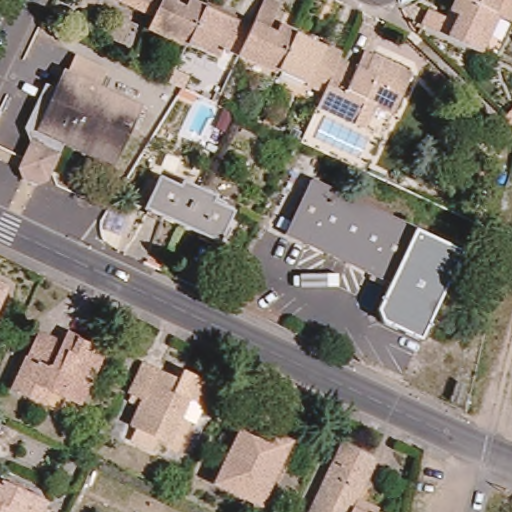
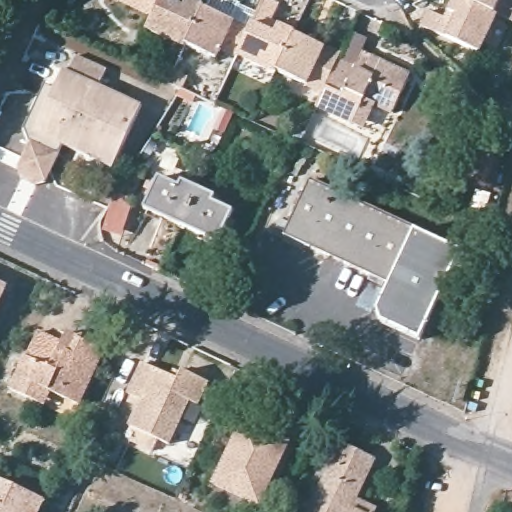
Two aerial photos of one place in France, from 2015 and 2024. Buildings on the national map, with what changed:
unchanged [(148,26),(112,10),(117,0),(160,0),(148,26)]
unchanged [(160,0),(179,0),(175,8),(197,19),(181,55),(141,39),(148,26),(160,0)]
unchanged [(492,15),(474,53),(416,26),(423,10),(441,19),(450,0),(458,0),(492,15)]
unchanged [(458,0),(507,0),(512,2),(512,20),(510,24),(492,15),(458,0)]
unchanged [(243,40),(259,8),(274,15),(266,32),(289,43),(271,81),(232,65),(243,40)]
unchanged [(197,19),(243,40),(232,65),(218,58),(213,70),(181,55),(197,19)]
unchanged [(289,43),(336,65),(333,70),(318,102),(271,81),(289,43)]
unchanged [(35,187),(21,180),(17,170),(22,160),(29,143),(24,128),(31,111),(44,84),(54,88),(63,69),(67,71),(74,55),(106,71),(99,86),(142,106),(113,169),(63,146),(50,173),(45,183),(35,187)]
unchanged [(388,124),(359,110),(348,134),(311,116),(318,102),(333,70),(350,78),(357,63),(366,67),(406,85),(388,124)]
unchanged [(502,118),(512,108),(512,127),(502,118)]
unchanged [(139,209),(154,178),(173,187),(176,180),(193,188),(176,226),(139,209)]
unchanged [(306,178),(411,227),(384,284),(279,235),(306,178)]
unchanged [(193,188),(211,196),(208,202),(229,212),(214,244),(176,226),(193,188)]
unchanged [(411,227),(460,251),(418,342),(380,324),(376,315),(384,284),(411,227)]
unchanged [(78,405),(49,391),(43,404),(12,389),(38,332),(61,343),(66,331),(80,337),(79,339),(103,350),(78,405)]
unchanged [(178,424),(168,445),(128,426),(139,400),(128,394),(143,363),(178,379),(182,370),(208,382),(197,406),(186,428),(178,424)]
unchanged [(260,507),(254,505),(209,484),(238,421),(283,442),(274,463),(279,465),(260,507)]
unchanged [(369,464),(351,505),(366,512),(306,512),(336,449),(369,464)]
unchanged [(34,512),(0,512),(0,483),(38,501),(34,512)]

